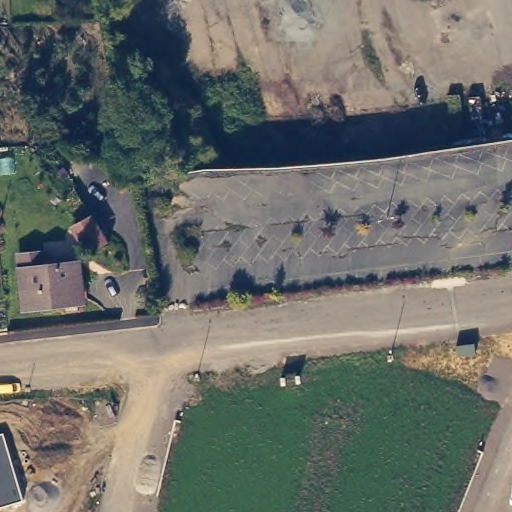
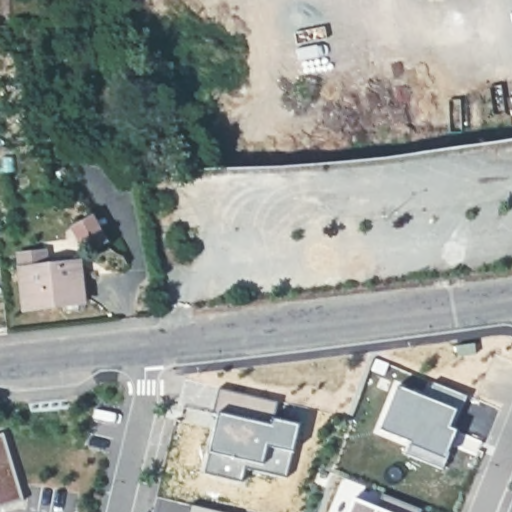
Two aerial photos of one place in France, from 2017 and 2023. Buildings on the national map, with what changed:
unchanged [(78,242),(65,199),(70,179),(111,248),(78,242)]
unchanged [(30,304),(24,250),(49,247),(51,261),(84,257),(87,298),(30,304)]
new [(397,386),(426,398),(432,382),(467,396),(453,430),(449,428),(439,454),(380,430),(397,386)]
new [(277,402),(273,419),(298,425),(286,477),(244,468),(241,481),(205,473),(214,433),(219,433),(224,415),(213,413),(219,389),(277,402)]
unchanged [(24,500),(0,507),(0,434),(3,433),(24,500)]
new [(352,501),(377,511),(383,497),(421,512),(420,512),(348,512),(352,501)]
new [(190,505),(225,512),(189,512),(190,505)]

